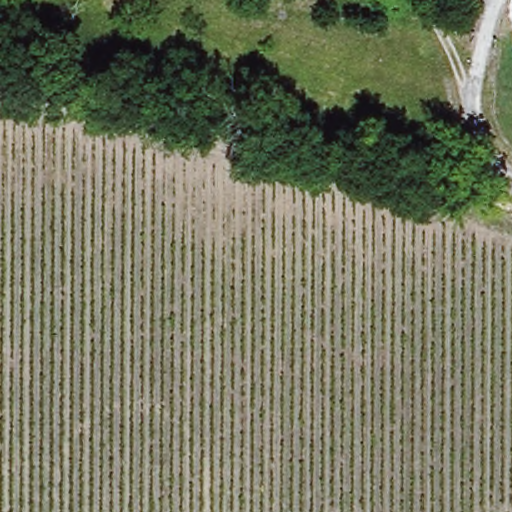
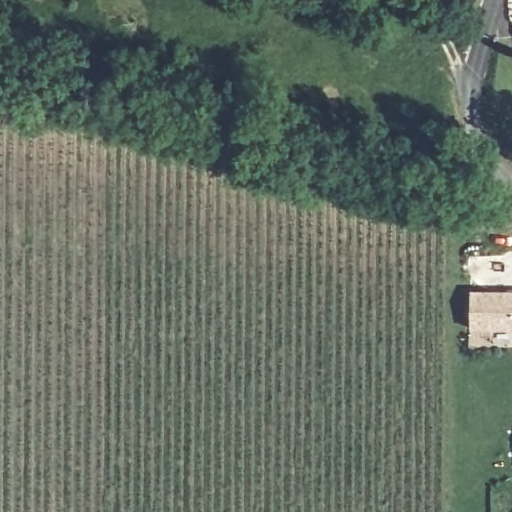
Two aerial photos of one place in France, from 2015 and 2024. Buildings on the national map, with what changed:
new [(470,291),(512,292),(512,330),(470,330),(470,291)]

